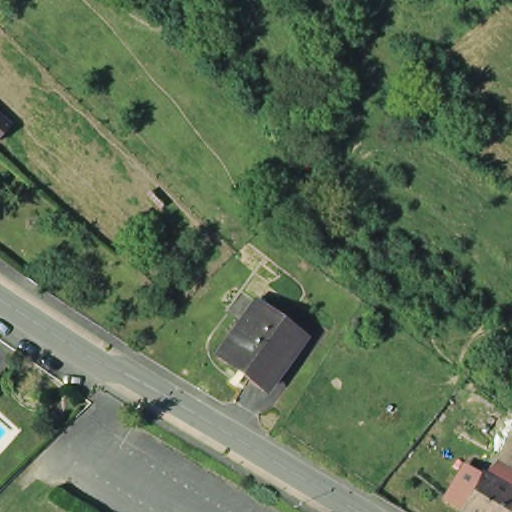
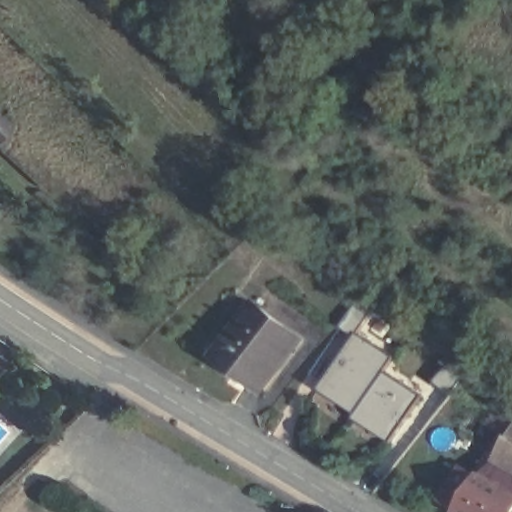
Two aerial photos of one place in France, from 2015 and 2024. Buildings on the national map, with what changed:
unchanged [(14,126),(0,141),(0,113),(14,126)]
new [(321,387),(356,337),(341,329),(356,302),(373,313),(361,333),(396,356),(386,370),(357,412),(321,387)]
unchanged [(264,309),(310,343),(273,394),(227,360),(264,309)]
new [(446,365),(463,378),(450,395),(433,382),(446,365)]
new [(357,412),(386,370),(423,395),(392,442),(391,441),(394,438),(359,414),(356,419),(354,417),(357,412)]
unchanged [(502,444),(512,450),(512,475),(491,464),(502,444)]
unchanged [(475,469),(478,465),(484,469),(482,473),(512,492),(512,504),(507,512),(463,512),(453,506),(475,469)]

